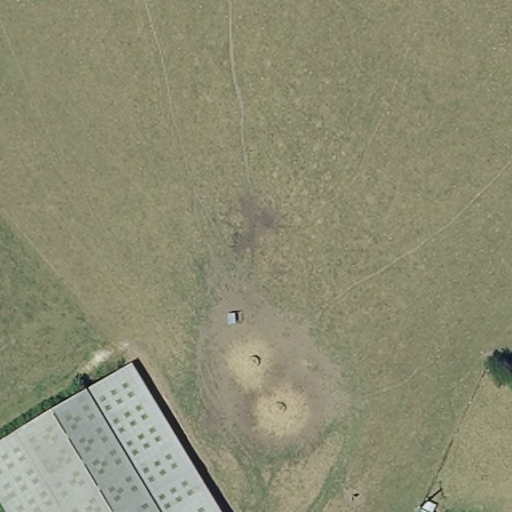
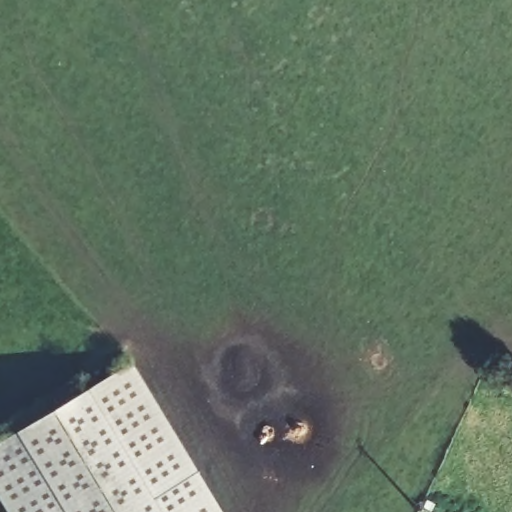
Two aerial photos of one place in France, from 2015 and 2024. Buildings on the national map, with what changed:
unchanged [(131,363),(220,512),(158,512),(86,394),(131,363)]
unchanged [(158,512),(6,512),(0,501),(0,442),(86,394),(158,512)]

